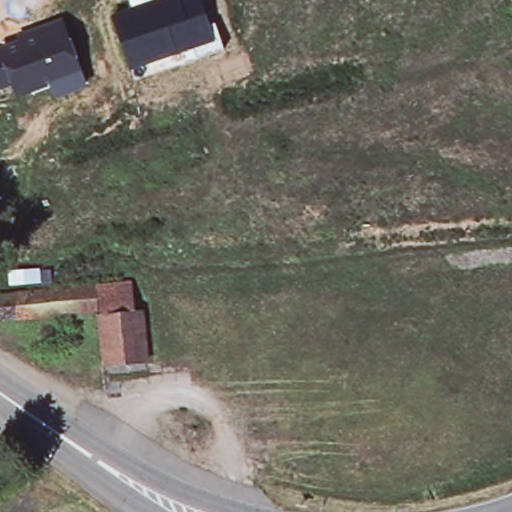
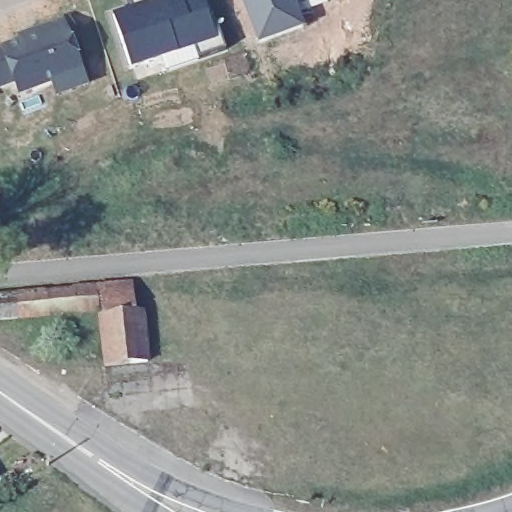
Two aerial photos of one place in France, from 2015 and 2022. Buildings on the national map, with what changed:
unchanged [(131,8),(128,0),(202,0),(211,25),(215,23),(223,49),(197,59),(193,48),(131,68),(112,15),(131,8)]
new [(257,41),(243,0),(297,0),(305,26),(257,41)]
unchanged [(19,90),(15,82),(0,88),(0,50),(4,48),(64,26),(79,68),(19,90)]
unchanged [(132,282),(135,311),(99,314),(99,311),(62,314),(60,289),(132,282)]
unchanged [(0,295),(60,289),(62,314),(0,320),(0,295)]
unchanged [(135,311),(140,310),(145,362),(103,366),(99,314),(135,311)]

